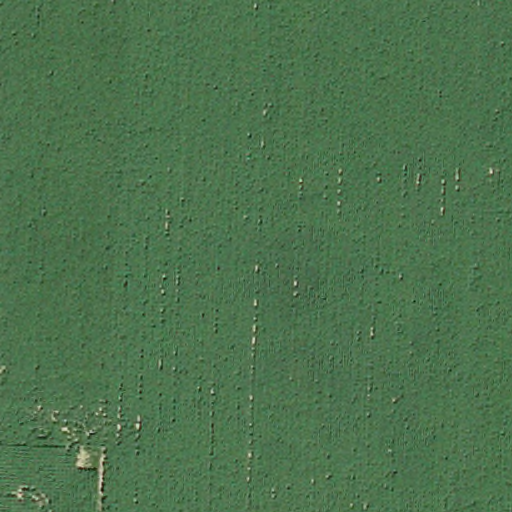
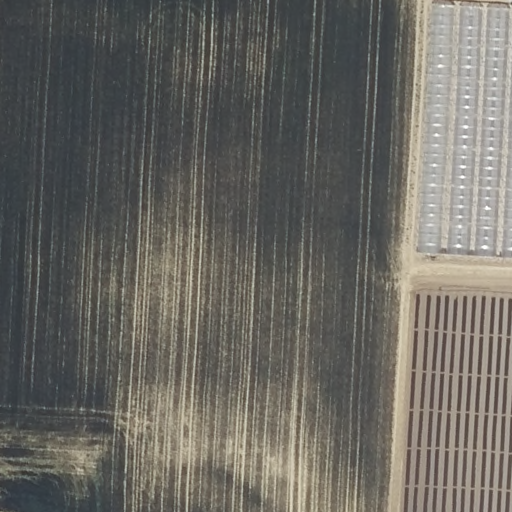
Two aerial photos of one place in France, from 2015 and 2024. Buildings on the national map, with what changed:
new [(422,250),(434,2),(512,7),(512,255),(422,250)]

